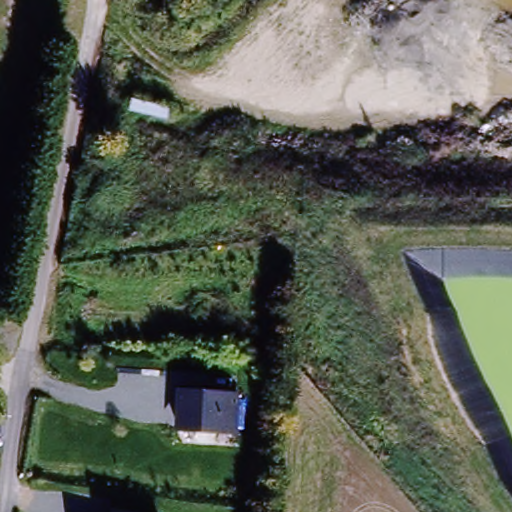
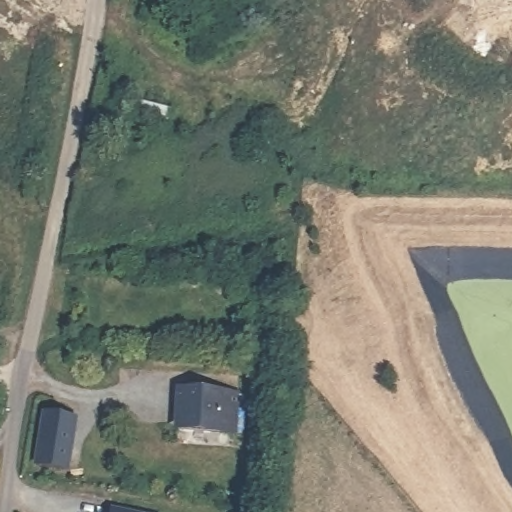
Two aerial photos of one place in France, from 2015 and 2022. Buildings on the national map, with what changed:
unchanged [(240,396),(239,438),(175,435),(176,394),(240,396)]
new [(45,419),(74,422),(68,472),(39,469),(45,419)]
unchanged [(120,512),(109,512),(109,510),(120,512)]

